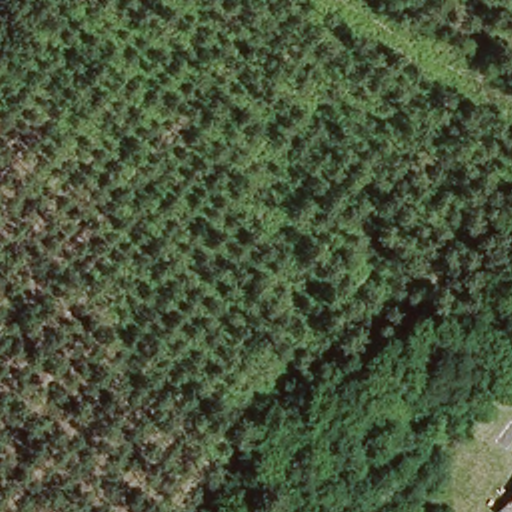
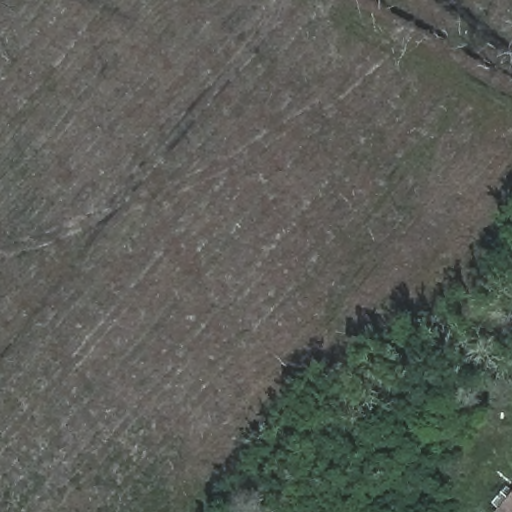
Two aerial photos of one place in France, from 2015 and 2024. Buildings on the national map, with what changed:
unchanged [(512,499),(512,512),(502,512),(512,499)]

